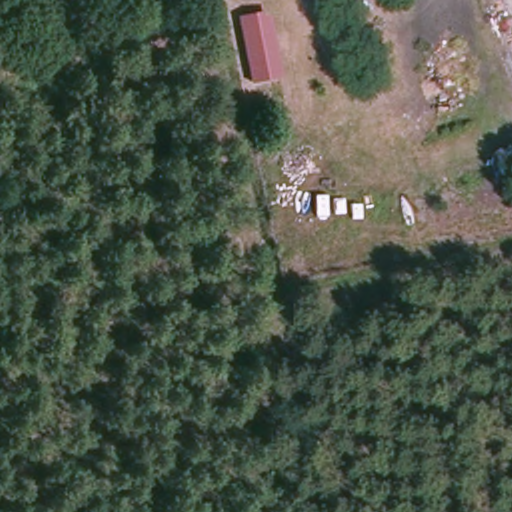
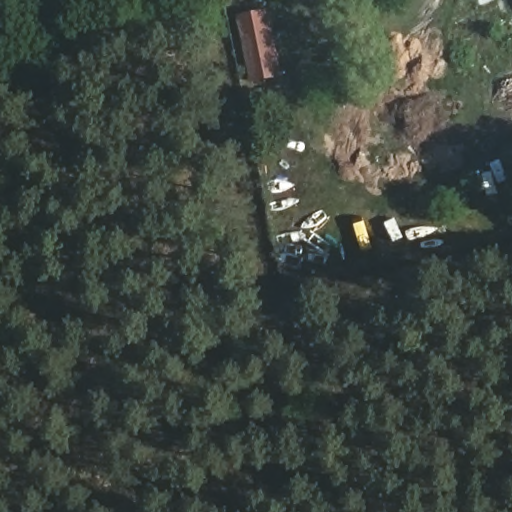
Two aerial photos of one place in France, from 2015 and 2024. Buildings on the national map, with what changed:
unchanged [(265,15),(280,80),(254,84),(239,17),(265,15)]

